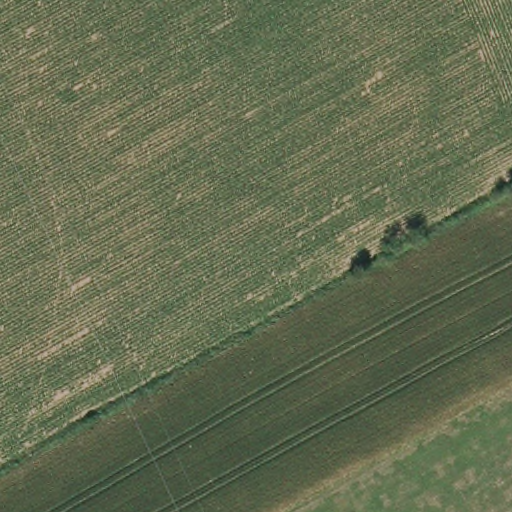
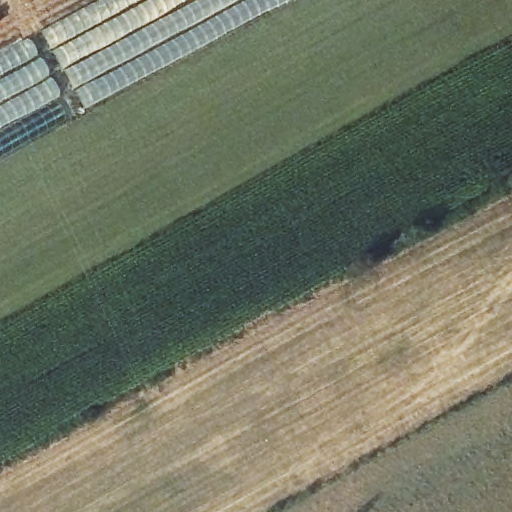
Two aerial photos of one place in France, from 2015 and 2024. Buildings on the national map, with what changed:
new [(85,108),(40,33),(102,0),(292,0),(85,108)]
new [(0,133),(0,57),(26,42),(60,98),(0,133)]

